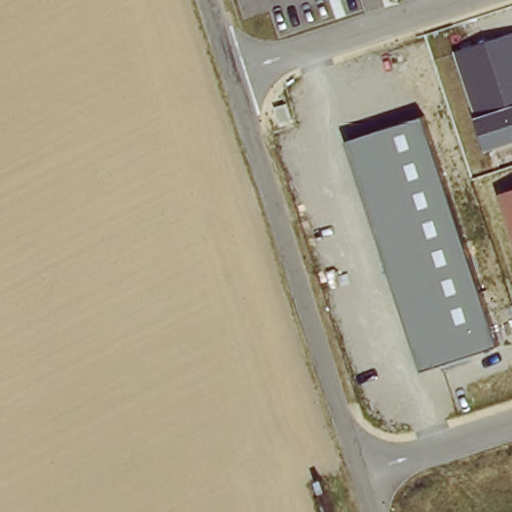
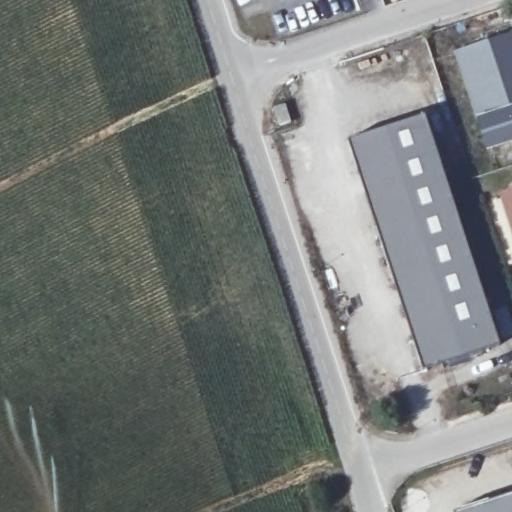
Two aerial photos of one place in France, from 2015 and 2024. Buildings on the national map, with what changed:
unchanged [(454,51),(512,34),(512,144),(487,151),(454,51)]
unchanged [(500,344),(423,370),(349,140),(425,117),(500,344)]
unchanged [(512,190),(512,231),(500,193),(512,190)]
new [(452,512),(512,492),(512,512),(452,512)]

